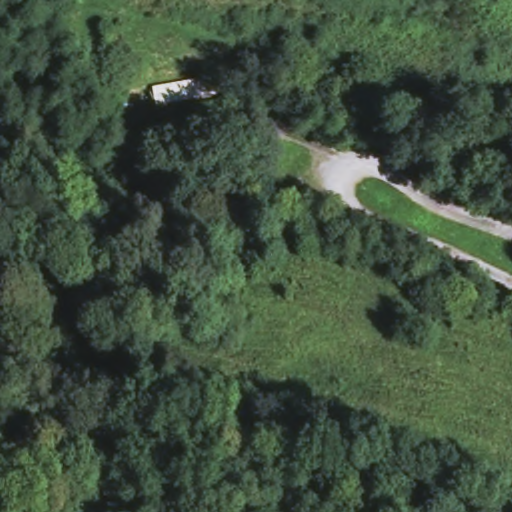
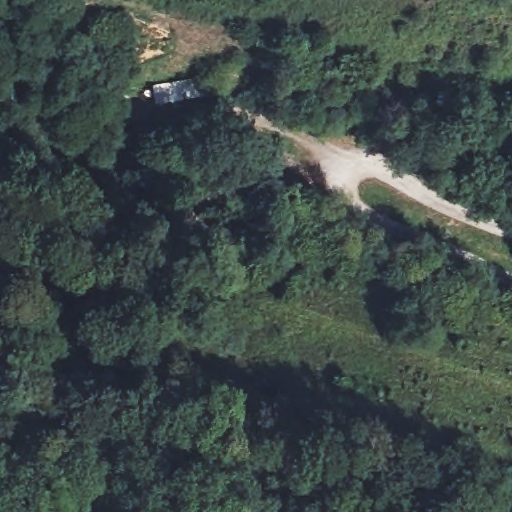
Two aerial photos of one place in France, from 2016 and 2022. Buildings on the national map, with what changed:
unchanged [(202,77),(205,95),(152,105),(150,85),(202,77)]

